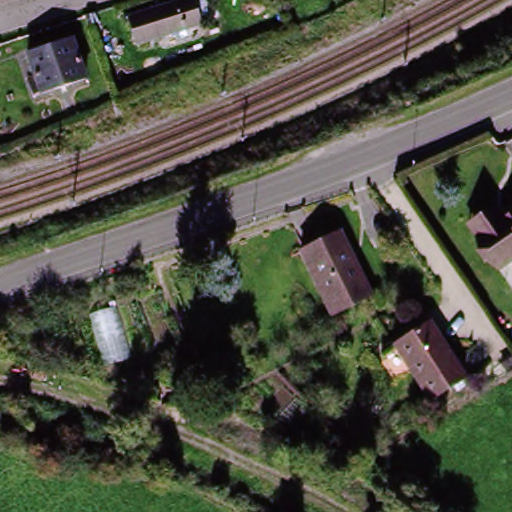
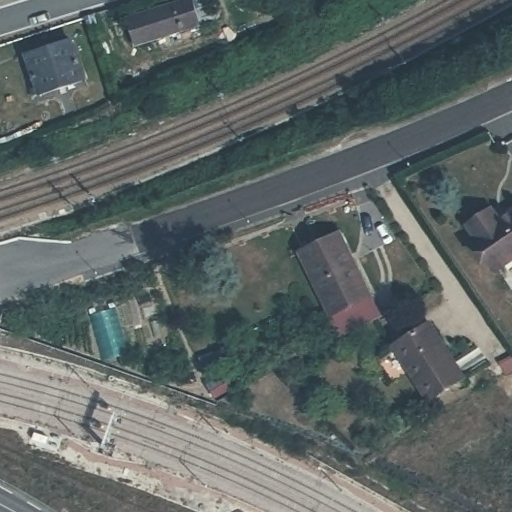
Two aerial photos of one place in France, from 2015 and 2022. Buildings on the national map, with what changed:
unchanged [(120,18),(178,0),(199,0),(205,19),(191,24),(128,44),(120,18)]
unchanged [(27,80),(35,77),(28,54),(70,40),(82,80),(40,94),(40,93),(30,95),(27,80)]
unchanged [(512,257),(495,268),(470,230),(465,224),(489,206),(493,212),(497,218),(512,208),(512,257)]
unchanged [(329,320),(297,256),(337,236),(369,300),(329,320)]
unchanged [(461,385),(425,405),(394,350),(430,329),(461,385)]

